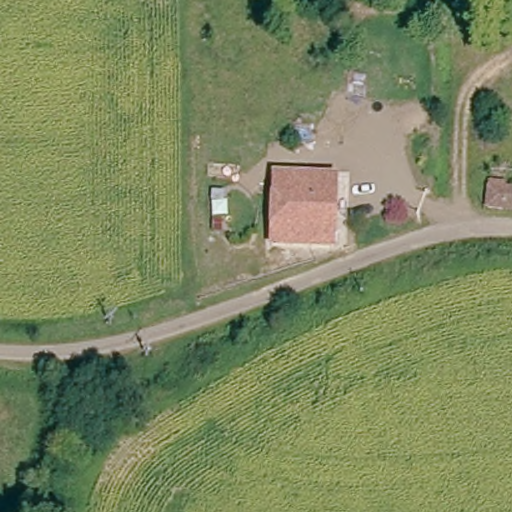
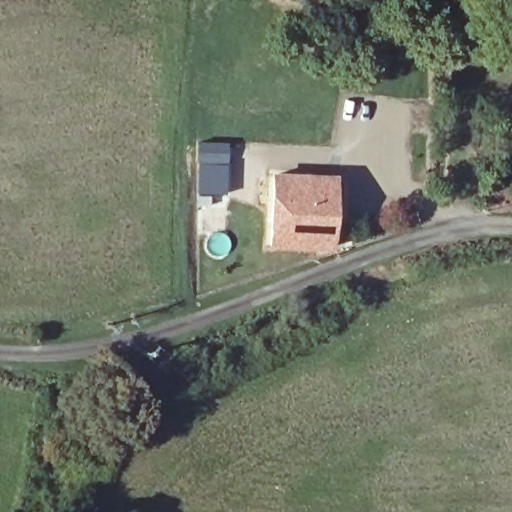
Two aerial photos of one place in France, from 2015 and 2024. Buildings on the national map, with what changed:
new [(227,142),(226,174),(222,174),(222,178),(226,178),(225,193),(198,192),(200,141),(227,142)]
unchanged [(268,180),(284,180),(334,179),(332,247),(293,247),(266,247),(268,180)]
unchanged [(512,186),(512,208),(489,207),(490,185),(512,186)]

